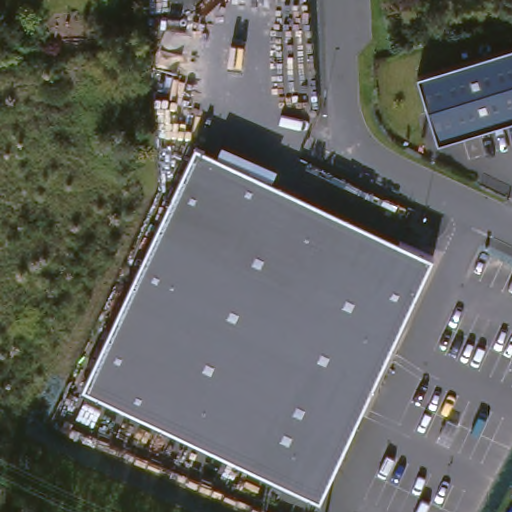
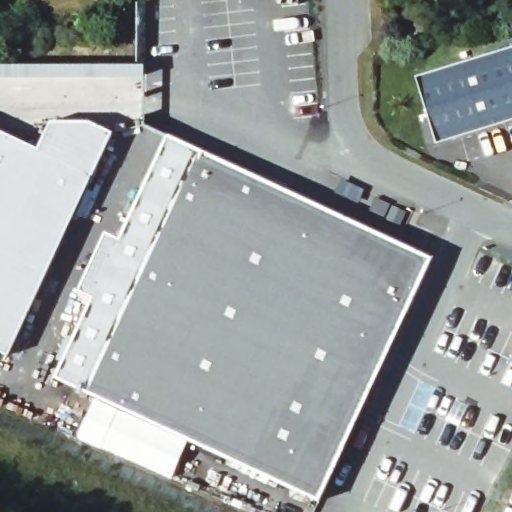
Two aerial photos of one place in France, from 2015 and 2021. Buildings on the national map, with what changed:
unchanged [(431,143),(411,79),(512,50),(512,122),(431,143)]
new [(146,78),(0,78),(0,65),(146,66),(146,78)]
new [(0,131),(38,147),(51,122),(89,122),(111,134),(8,355),(0,351),(0,131)]
new [(54,379),(91,297),(78,290),(104,232),(119,239),(166,137),(193,149),(80,390),(54,379)]
unchanged [(429,258),(318,501),(80,390),(193,149),(429,258)]

